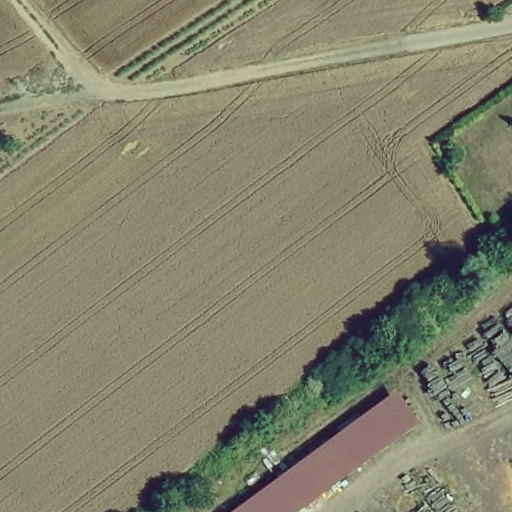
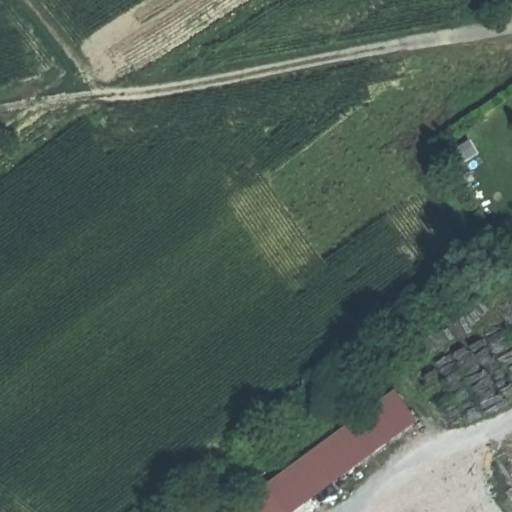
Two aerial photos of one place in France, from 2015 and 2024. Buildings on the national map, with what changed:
unchanged [(422,425),(301,512),(237,512),(397,391),(422,425)]

